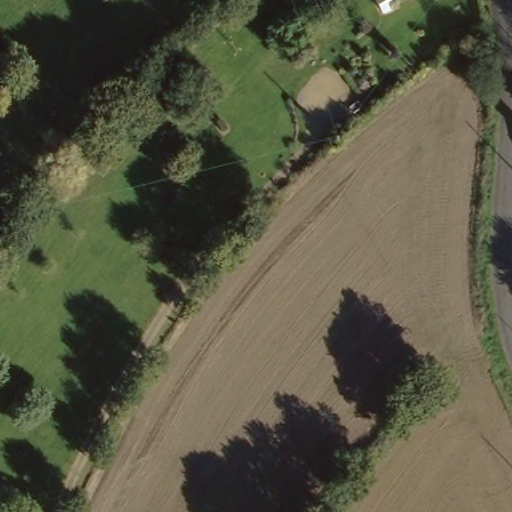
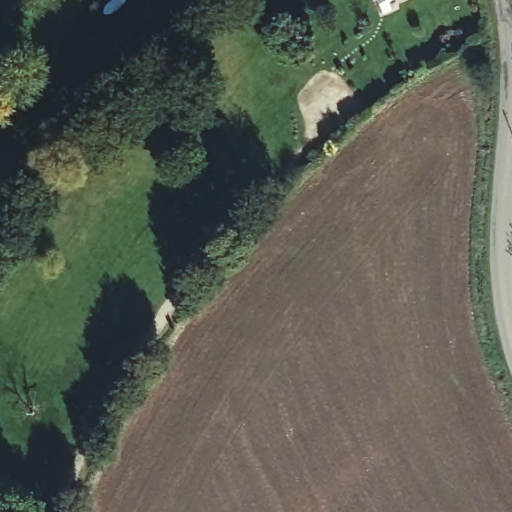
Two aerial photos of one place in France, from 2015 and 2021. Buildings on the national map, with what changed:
unchanged [(395,3),(379,10),(375,0),(409,0),(398,5),(395,3)]

